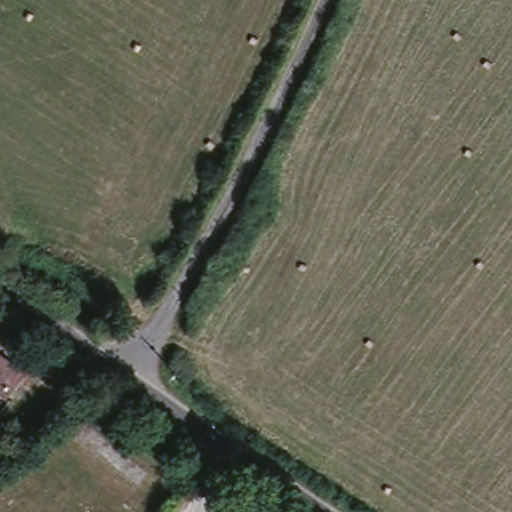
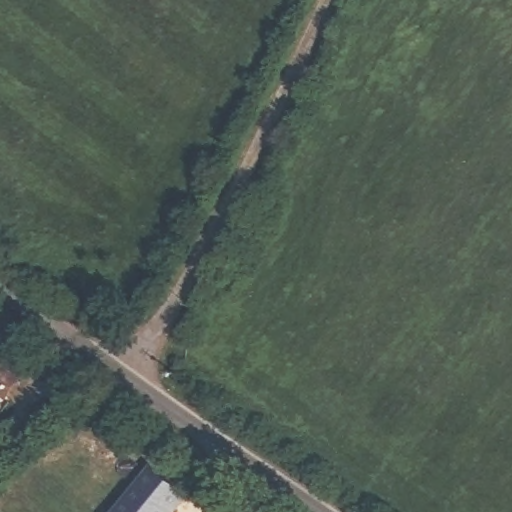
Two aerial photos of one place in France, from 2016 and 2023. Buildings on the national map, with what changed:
unchanged [(28,368),(11,396),(0,388),(0,348),(28,368)]
new [(193,488),(173,512),(111,512),(155,460),(193,488)]

